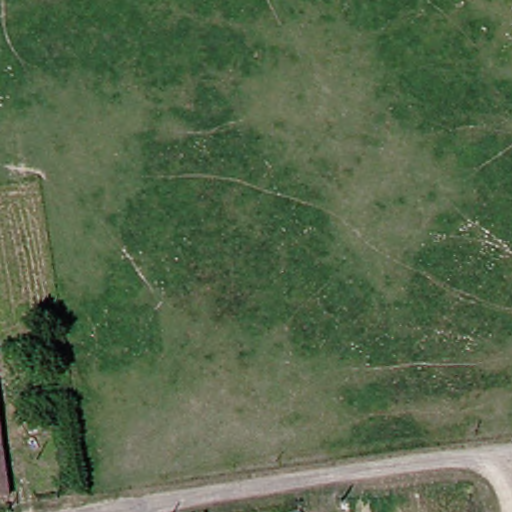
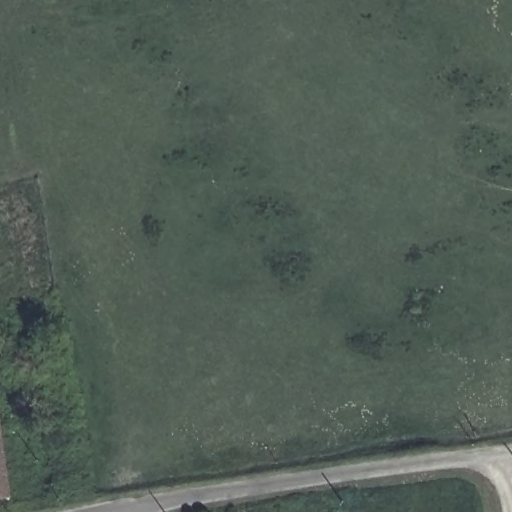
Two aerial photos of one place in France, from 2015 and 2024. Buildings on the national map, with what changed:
unchanged [(14,348),(29,346),(31,360),(16,362),(14,348)]
unchanged [(0,495),(0,471),(3,495),(0,495)]

